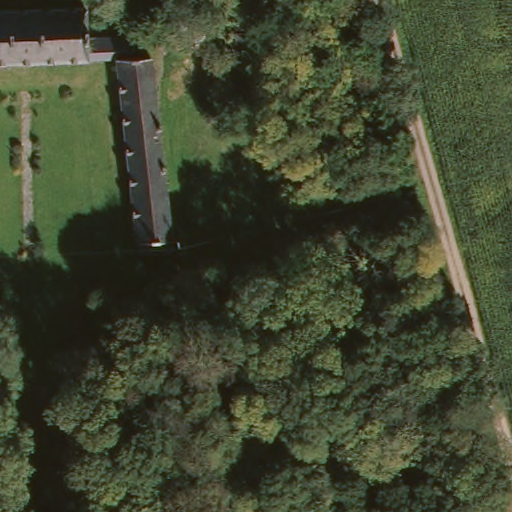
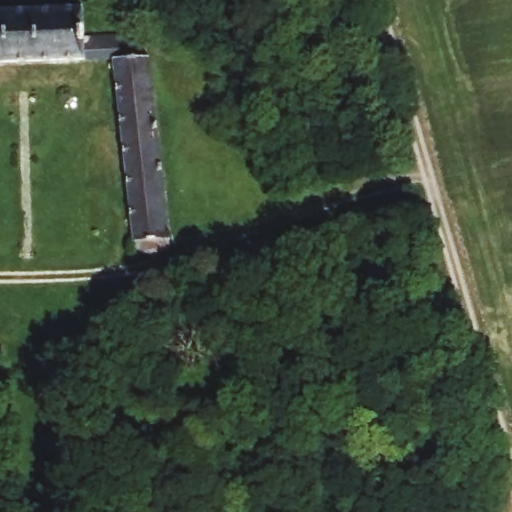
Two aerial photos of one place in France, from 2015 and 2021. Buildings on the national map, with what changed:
unchanged [(80,2),(81,33),(83,58),(0,61),(0,4),(80,2)]
unchanged [(136,239),(113,56),(83,58),(81,33),(129,32),(130,54),(146,53),(167,235),(136,239)]

